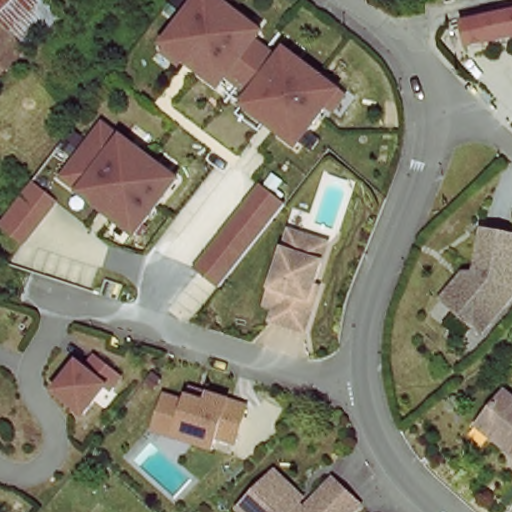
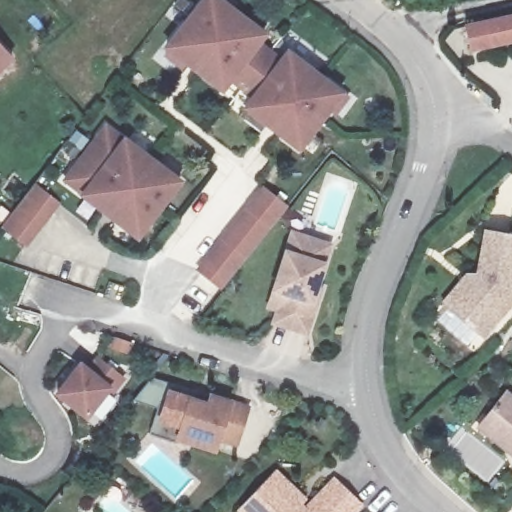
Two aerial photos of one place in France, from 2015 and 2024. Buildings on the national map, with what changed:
unchanged [(269,36),(265,40),(262,45),(285,63),(288,58),(292,54),(304,63),(345,95),(302,150),(249,109),(257,99),(234,80),(226,91),(171,48),(208,0),(222,0),(256,26),(269,36)]
unchanged [(512,47),(475,55),(470,32),(512,23),(512,47)]
unchanged [(20,57),(0,76),(0,36),(20,57)]
unchanged [(109,132),(127,146),(128,145),(183,187),(140,243),(85,200),(86,199),(68,185),(109,132)]
unchanged [(264,238),(225,286),(202,268),(265,188),(288,207),(264,238)]
unchanged [(62,210),(30,251),(7,232),(37,192),(38,192),(62,210)]
unchanged [(475,283),(478,279),(488,231),(512,236),(512,307),(484,339),(451,310),(444,304),(467,277),(475,283)]
unchanged [(280,298),(300,241),(338,254),(319,310),(323,312),(313,342),(280,330),(283,319),(274,316),(280,298)]
unchanged [(125,384),(114,397),(110,394),(87,422),(58,399),(82,370),(90,376),(100,363),(125,384)]
unchanged [(164,420),(172,398),(193,405),(195,400),(198,392),(216,398),(252,410),(240,446),(222,440),(218,452),(181,439),(160,432),(164,420)]
unchanged [(512,452),(495,438),(481,427),(491,416),(509,393),(512,395),(512,452)]
unchanged [(279,471),(307,499),(302,503),(308,509),(337,479),(364,505),(357,512),(245,512),(242,509),(279,471)]

